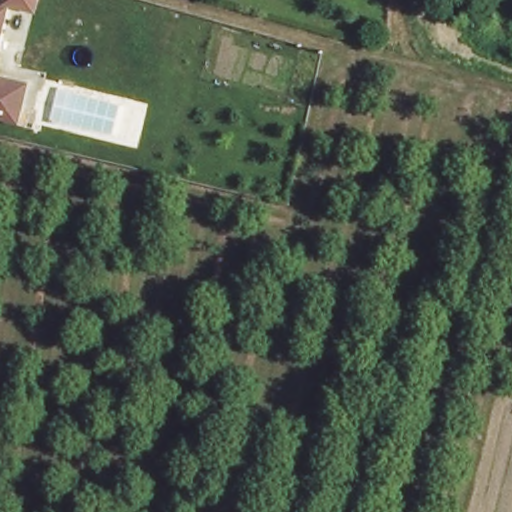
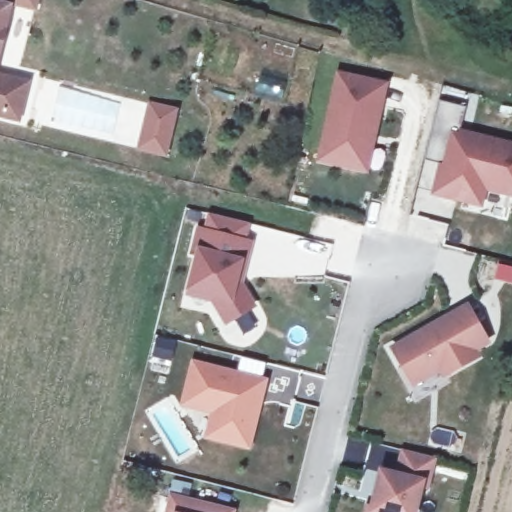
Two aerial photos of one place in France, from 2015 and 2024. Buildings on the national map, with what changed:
unchanged [(0,25),(0,0),(7,0),(0,25)]
new [(336,71),(390,82),(368,174),(316,162),(336,71)]
unchanged [(14,118),(0,115),(0,74),(26,80),(14,118)]
new [(482,207),(431,195),(438,163),(425,160),(439,101),(465,107),(460,129),(512,142),(512,199),(487,192),(482,207)]
new [(212,302),(186,296),(186,292),(196,247),(197,228),(254,241),(244,283),(257,307),(225,326),(212,302)]
new [(452,311),(471,344),(457,352),(461,359),(431,376),(427,369),(399,385),(380,352),(452,311)]
new [(209,435),(215,410),(185,402),(194,364),(262,381),(247,444),(209,435)]
new [(370,505),(379,468),(397,472),(402,449),(437,457),(429,492),(423,491),(417,512),(363,512),(365,504),(370,505)]
new [(225,512),(170,512),(173,499),(225,512)]

